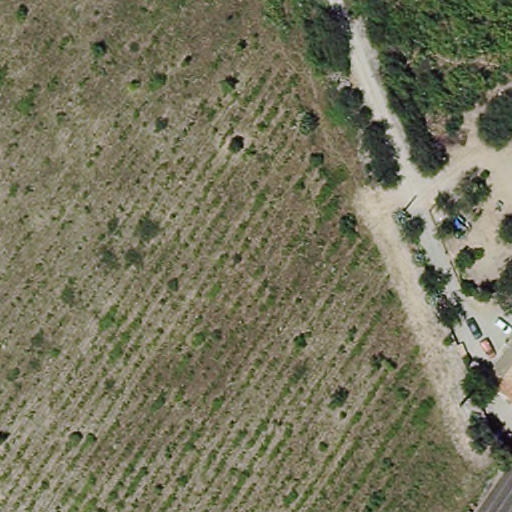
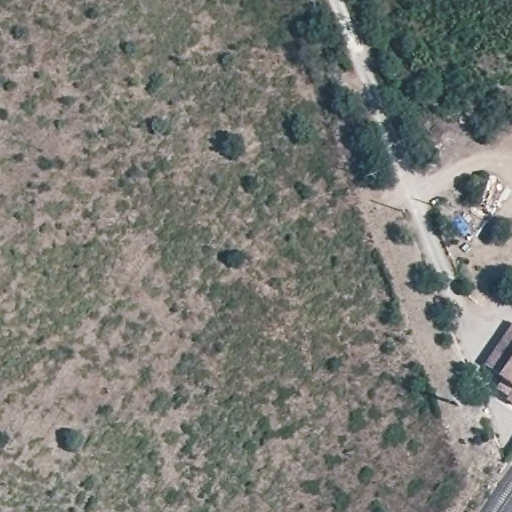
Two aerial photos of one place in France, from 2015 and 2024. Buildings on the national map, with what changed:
unchanged [(512,369),(512,377),(508,375),(512,369)]
unchanged [(512,397),(511,397),(512,396),(512,397)]

